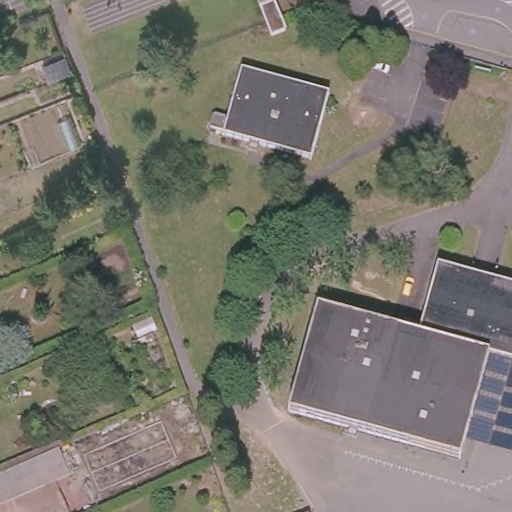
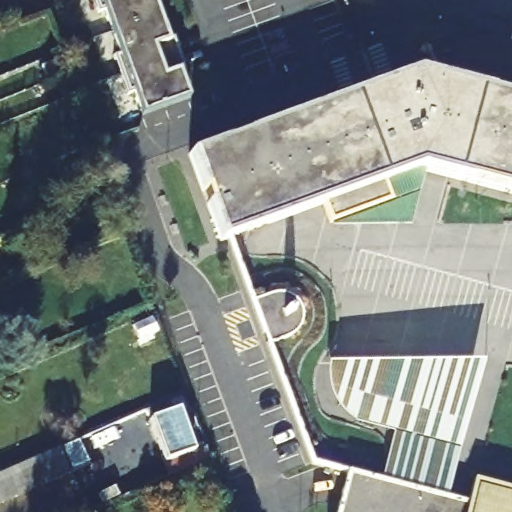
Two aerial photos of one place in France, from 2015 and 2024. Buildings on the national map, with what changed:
new [(167,40),(172,38),(184,69),(177,70),(187,97),(141,112),(100,0),(153,0),(167,40)]
demolished [(282,29),(269,34),(265,21),(260,8),(272,2),(282,29)]
demolished [(324,91),(308,156),(222,133),(241,70),(324,91)]
new [(412,76),(512,104),(512,199),(417,172),(220,245),(189,158),(412,76)]
new [(331,226),(325,206),(417,172),(424,174),(410,227),(331,226)]
demolished [(490,353),(418,333),(440,265),(512,284),(512,359),(490,353)]
new [(271,295),(283,294),(294,299),(300,309),(302,321),(297,331),(287,338),(270,345),(254,301),(271,295)]
demolished [(459,456),(295,410),(326,307),(418,333),(490,353),(459,456)]
new [(484,356),(460,447),(355,421),(342,410),(332,394),(325,375),(326,355),(484,356)]
new [(392,430),(460,447),(447,494),(380,477),(392,430)]
unchanged [(0,502),(0,472),(57,447),(69,472),(0,502)]
new [(336,512),(347,469),(468,500),(475,475),(512,485),(512,512),(336,512)]
demolished [(312,512),(307,512),(311,511),(312,512)]

